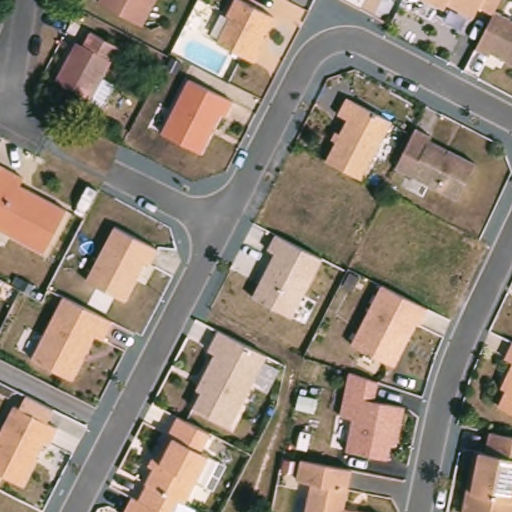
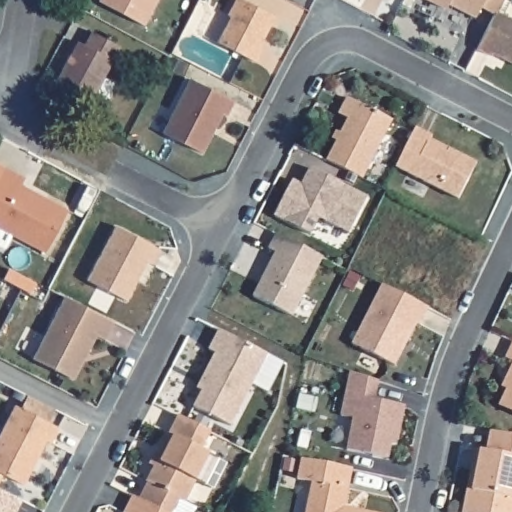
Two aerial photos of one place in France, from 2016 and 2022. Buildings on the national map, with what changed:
unchanged [(99,1),(100,0),(156,0),(143,25),(99,1)]
unchanged [(228,16),(226,15),(234,0),(240,0),(272,16),(257,46),(260,47),(252,61),(215,42),(228,16)]
unchanged [(492,16),(477,9),(473,16),(448,3),(445,8),(427,0),(500,0),(494,12),(492,16)]
unchanged [(512,64),(489,52),(487,55),(473,48),(491,13),(492,11),(512,21),(512,64)]
unchanged [(102,76),(115,82),(102,105),(56,79),(70,53),(77,40),(83,44),(91,29),(120,45),(102,76)]
unchanged [(228,116),(224,114),(204,153),(165,133),(193,79),(236,101),(228,116)]
unchanged [(325,160),(347,119),(337,114),(345,98),(390,121),(361,178),(325,160)]
unchanged [(430,136),(426,143),(445,153),(447,149),(474,163),(456,198),(394,166),(414,128),(430,136)]
unchanged [(24,177),(20,184),(68,210),(44,253),(0,228),(0,176),(5,167),(24,177)]
new [(291,180),(300,185),(308,168),(366,198),(347,234),(317,218),(309,235),(272,216),(286,189),(291,180)]
unchanged [(85,280),(112,226),(155,248),(148,263),(143,260),(123,300),(85,280)]
unchanged [(253,297),(274,252),(267,248),(275,233),(324,259),(294,317),(253,297)]
unchanged [(352,343),(383,284),(427,308),(419,325),(416,323),(395,366),(352,343)]
unchanged [(112,321),(102,339),(94,335),(71,379),(33,359),(64,297),(112,321)]
unchanged [(194,406),(201,391),(197,388),(215,352),(208,349),(218,330),(269,355),(233,426),(194,406)]
unchanged [(512,341),(512,361),(504,357),(512,341)]
unchanged [(508,381),(503,379),(512,361),(512,412),(497,405),(508,381)]
unchanged [(346,451),(352,418),(338,416),(349,373),(379,381),(376,400),(405,406),(397,443),(390,442),(386,458),(346,451)]
unchanged [(0,474),(0,430),(13,405),(56,427),(48,443),(44,440),(21,484),(0,473),(0,474)]
unchanged [(214,430),(206,449),(219,454),(204,486),(191,481),(177,512),(163,512),(150,506),(149,505),(146,503),(138,499),(176,416),(214,430)]
unchanged [(466,489),(474,450),(479,451),(480,452),(485,430),(512,436),(512,512),(462,512),(466,489)]
unchanged [(342,507),(366,512),(304,512),(310,482),(295,479),(299,459),(350,469),(342,507)]
new [(20,499),(14,512),(0,512),(0,490),(20,499)]
unchanged [(131,496),(138,499),(146,503),(149,505),(150,506),(163,512),(123,512),(131,496)]

